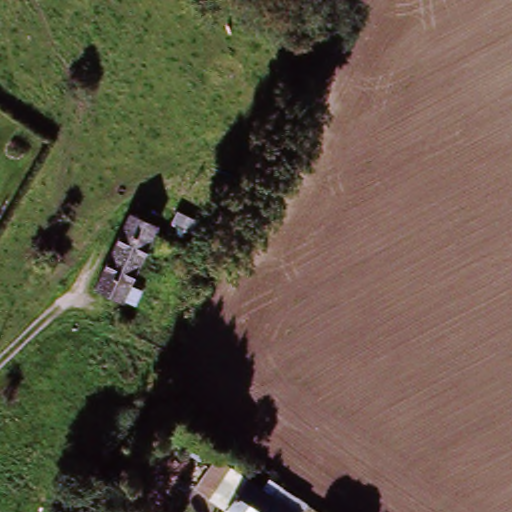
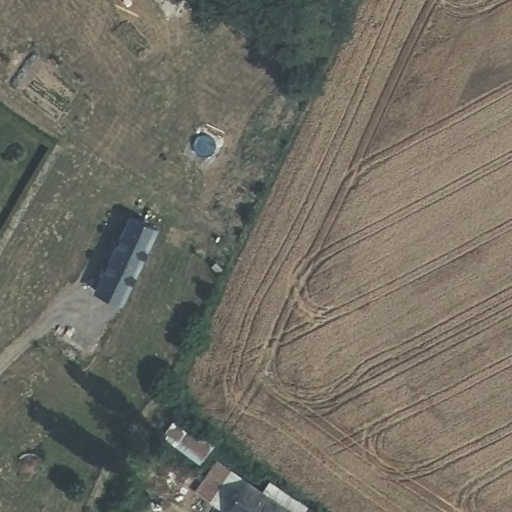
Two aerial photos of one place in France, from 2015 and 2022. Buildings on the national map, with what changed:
unchanged [(156,233),(117,305),(91,290),(132,218),(156,233)]
unchanged [(179,252),(158,240),(163,232),(182,243),(179,252)]
unchanged [(308,512),(218,512),(226,501),(195,481),(214,452),(259,482),(268,469),(315,502),(308,512)]

